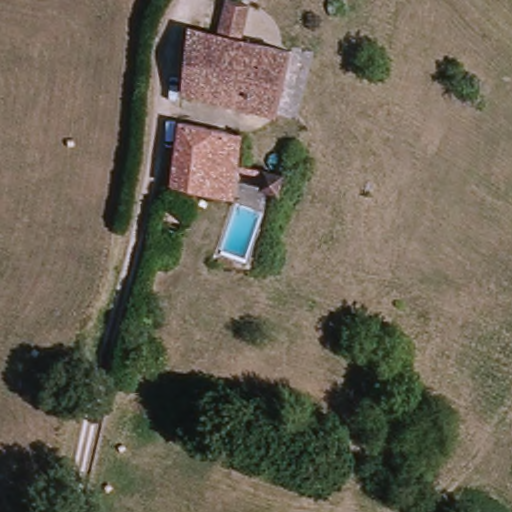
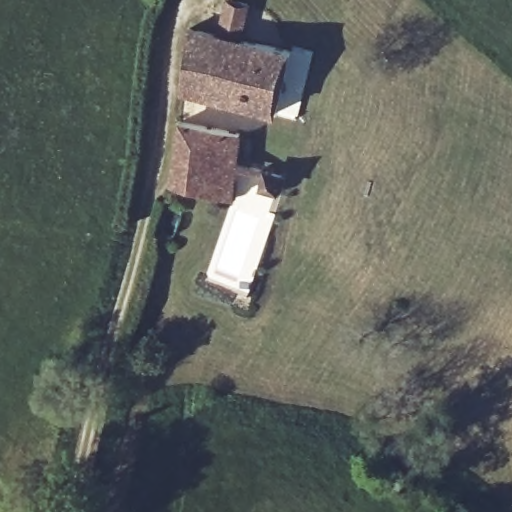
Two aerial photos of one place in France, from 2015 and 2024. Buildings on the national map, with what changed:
unchanged [(297,59),(282,119),(180,94),(187,27),(222,37),(231,10),(234,3),(253,6),(252,17),(245,44),(297,59)]
unchanged [(172,188),(180,124),(242,138),(232,199),(172,188)]
unchanged [(291,168),(287,194),(264,188),(271,162),(291,168)]
unchanged [(145,209),(149,184),(171,191),(168,204),(162,202),(160,212),(145,209)]

